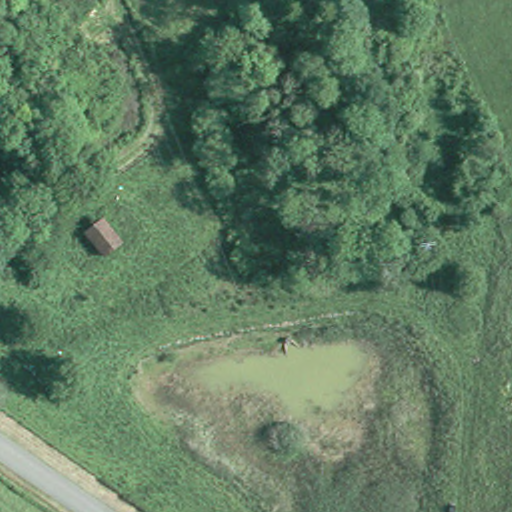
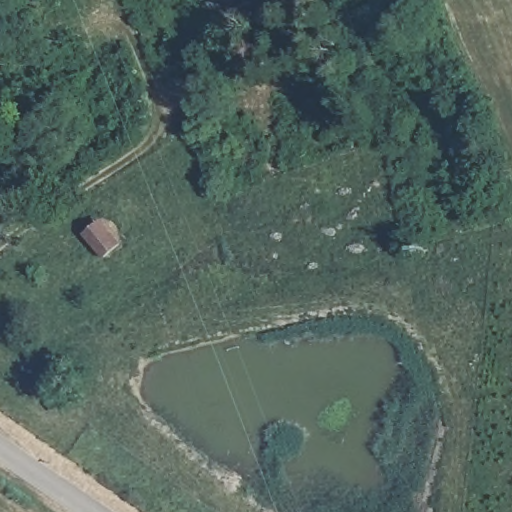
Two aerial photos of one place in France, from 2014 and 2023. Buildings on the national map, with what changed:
unchanged [(101,213),(127,239),(110,259),(84,236),(101,213)]

